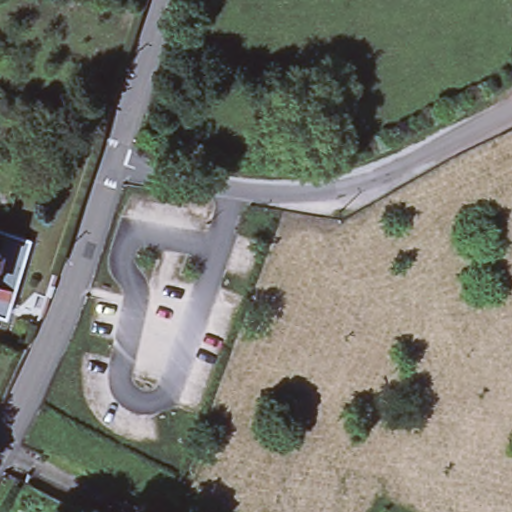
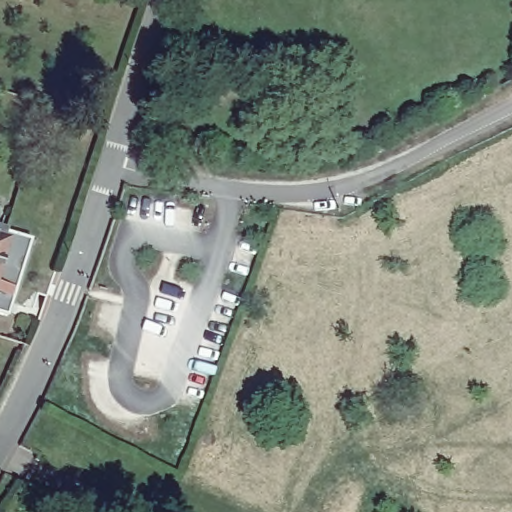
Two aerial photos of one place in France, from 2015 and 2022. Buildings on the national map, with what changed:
unchanged [(3,225),(0,235),(0,224),(3,225)]

